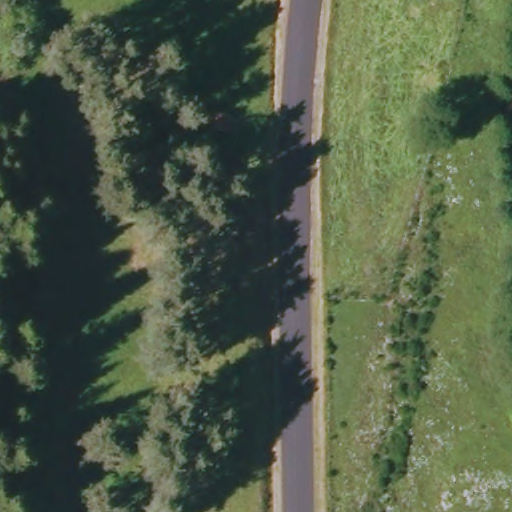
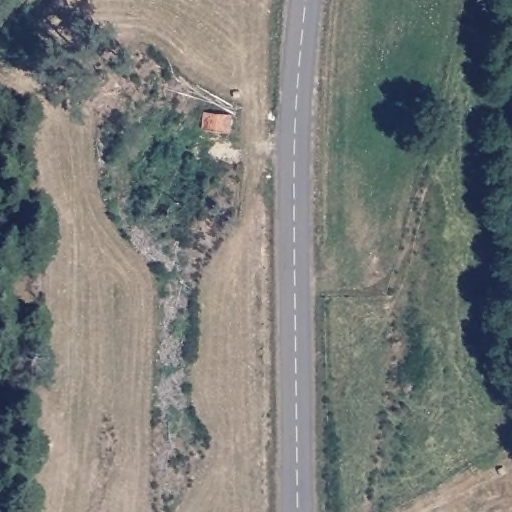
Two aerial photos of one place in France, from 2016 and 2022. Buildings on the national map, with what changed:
unchanged [(191,224),(191,203),(222,202),(223,222),(191,224)]

